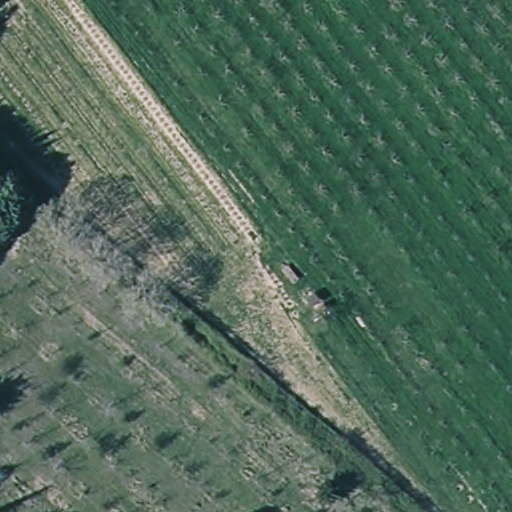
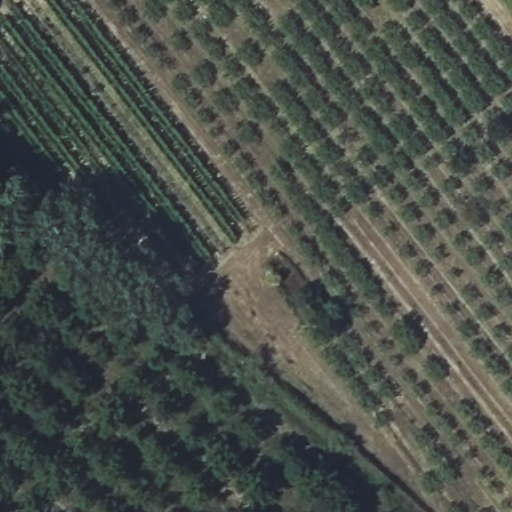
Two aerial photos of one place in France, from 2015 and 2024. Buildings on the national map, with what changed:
unchanged [(315,313),(308,317),(294,299),(310,287),(324,305),(315,313)]
unchanged [(321,320),(315,313),(324,306),(330,314),(321,320)]

